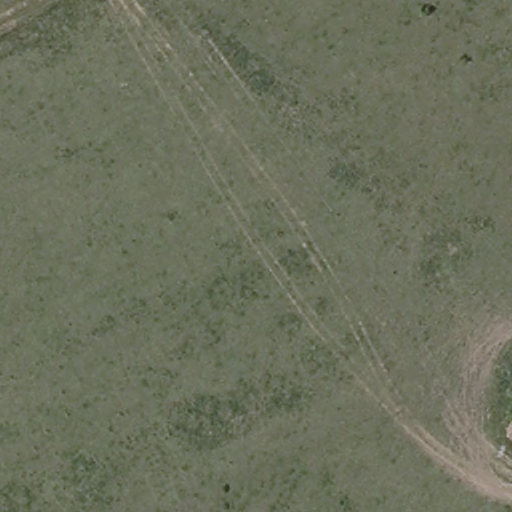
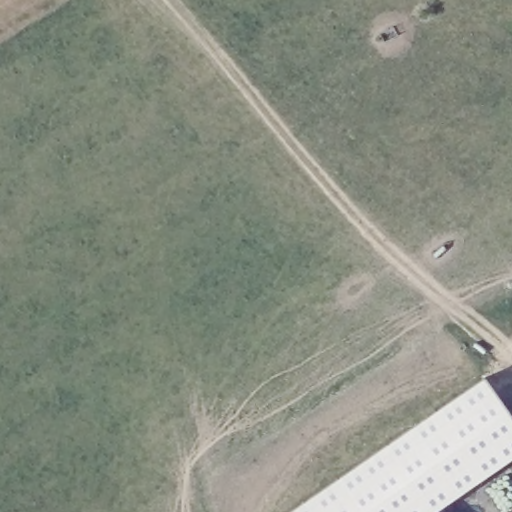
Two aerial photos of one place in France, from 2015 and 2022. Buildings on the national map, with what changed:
new [(484,378),(512,420),(512,457),(433,512),(289,512),(484,378)]

